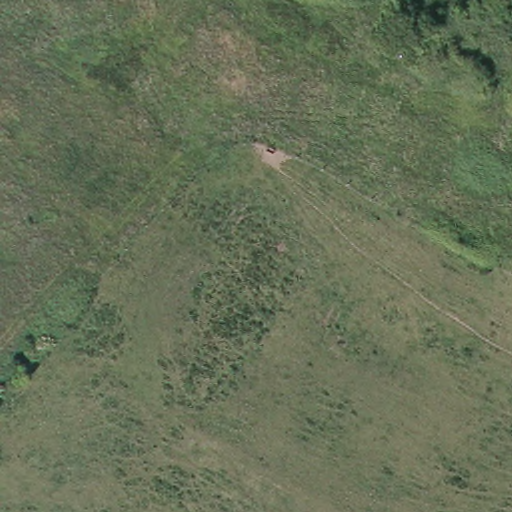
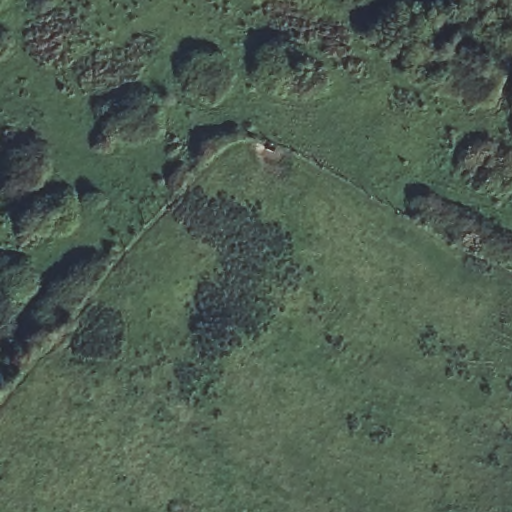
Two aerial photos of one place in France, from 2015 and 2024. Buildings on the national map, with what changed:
[]

